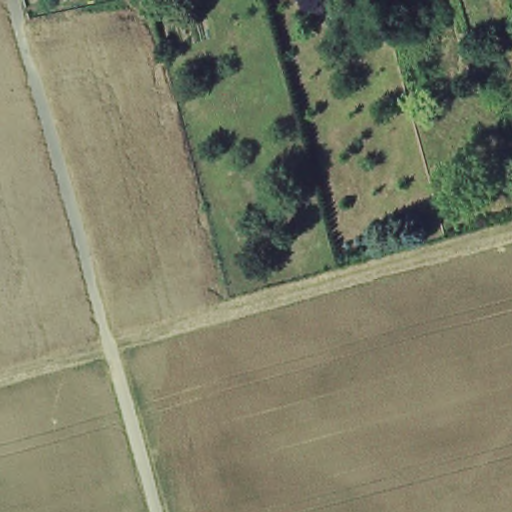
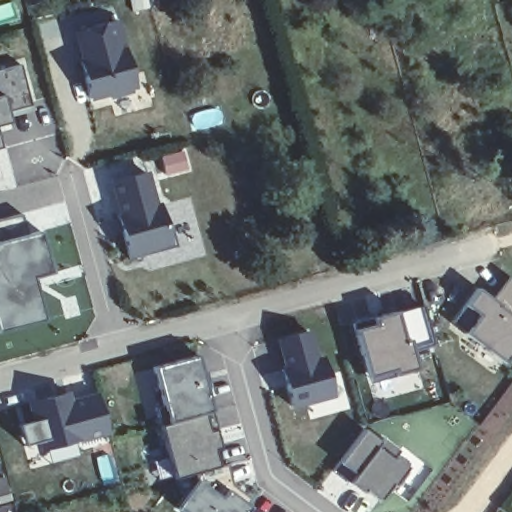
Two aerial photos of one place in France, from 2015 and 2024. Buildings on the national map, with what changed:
new [(136,89),(132,90),(132,92),(108,99),(107,96),(90,100),(78,59),(71,32),(117,20),(125,46),(136,89)]
new [(160,204),(166,226),(170,226),(176,246),(128,260),(127,256),(116,215),(118,215),(108,181),(147,171),(155,205),(160,204)]
new [(41,230),(53,273),(34,278),(45,320),(0,333),(0,220),(21,214),(27,234),(41,230)]
new [(481,345),(465,333),(466,332),(452,321),(477,289),(490,300),(507,276),(512,280),(512,349),(505,358),(503,361),(481,345)]
new [(361,354),(353,323),(395,311),(396,316),(424,308),(434,345),(411,351),(416,368),(395,375),(393,370),(376,375),(367,377),(361,354)]
new [(281,370),(286,368),(278,339),(307,331),(315,360),(322,358),(332,395),(291,406),(285,385),(281,370)]
new [(160,426),(155,408),(163,406),(153,367),(197,355),(212,411),(160,426)]
new [(30,403),(51,397),(65,393),(66,393),(69,403),(98,395),(108,432),(42,450),(40,441),(24,446),(18,425),(35,421),(30,403)]
new [(245,505),(250,508),(247,512),(183,512),(178,508),(198,481),(195,473),(174,479),(160,426),(212,411),(217,430),(208,432),(218,467),(226,465),(231,485),(250,498),(245,505)]
new [(363,429),(380,441),(382,437),(400,451),(392,461),(407,472),(393,491),(388,487),(378,501),(351,480),(349,483),(332,470),(363,429)]

